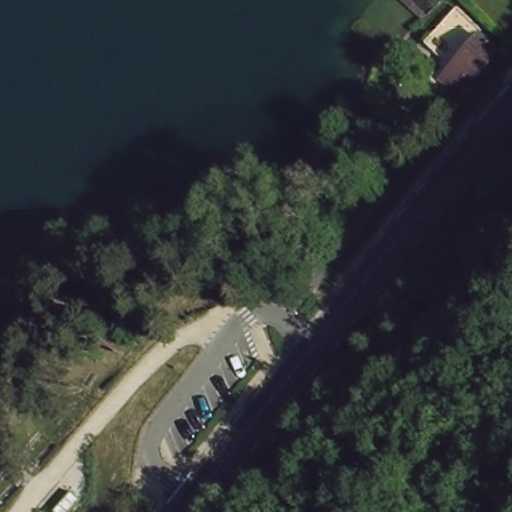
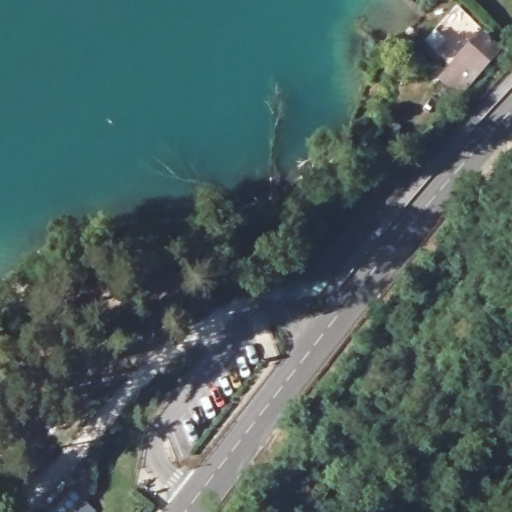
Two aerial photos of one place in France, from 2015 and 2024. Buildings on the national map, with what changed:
unchanged [(437,58),(444,50),(475,16),(493,33),(462,66),(455,74),(437,58)]

